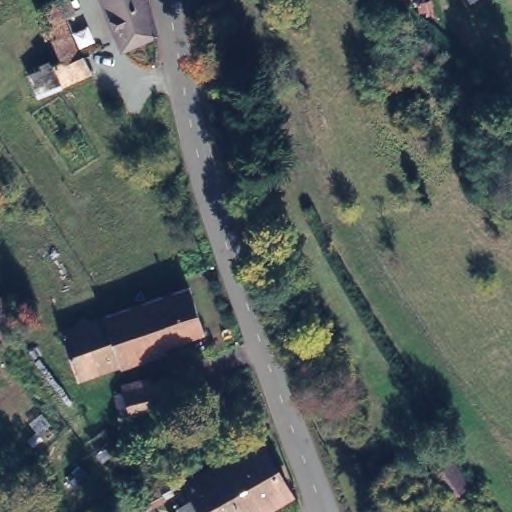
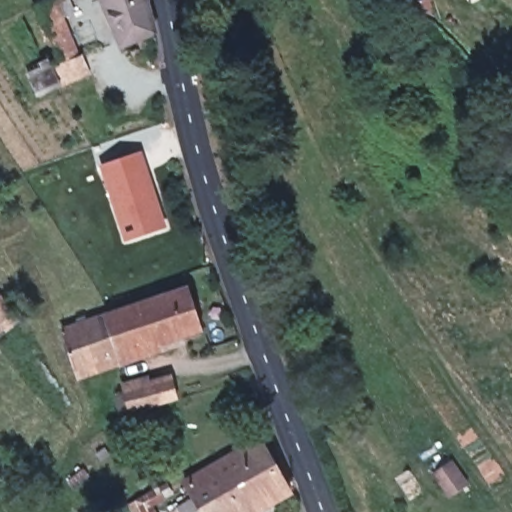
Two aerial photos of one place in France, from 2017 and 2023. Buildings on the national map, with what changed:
unchanged [(22,74),(53,59),(32,9),(54,0),(61,0),(65,11),(57,16),(75,57),(79,56),(86,71),(32,95),(22,74)]
unchanged [(110,51),(91,0),(134,0),(147,36),(110,51)]
new [(166,229),(125,241),(100,165),(140,151),(166,229)]
unchanged [(117,354),(117,358),(95,366),(93,360),(70,366),(55,324),(77,317),(75,311),(82,308),(85,315),(182,284),(196,327),(117,354)]
unchanged [(178,401),(130,413),(124,394),(172,380),(178,401)]
unchanged [(266,446),(294,497),(266,512),(186,512),(182,505),(196,498),(190,487),(266,446)]
unchanged [(442,466),(458,459),(462,458),(474,483),(470,485),(455,491),(442,466)]
unchanged [(163,497),(170,491),(177,498),(170,504),(163,497)]

